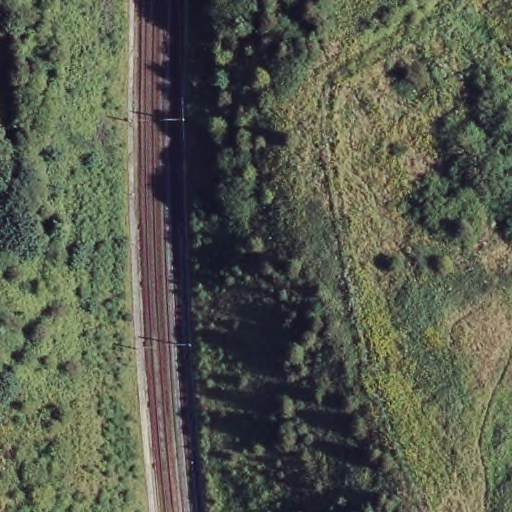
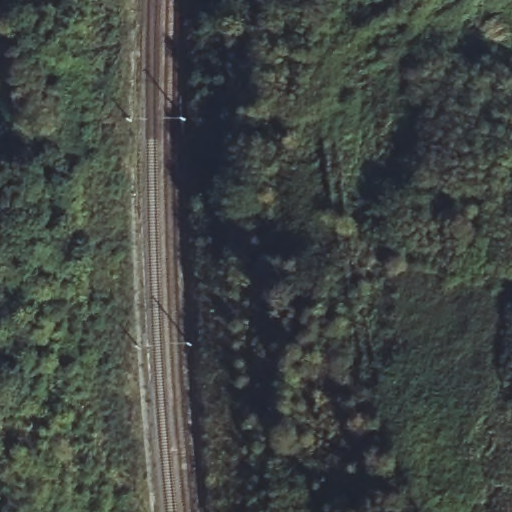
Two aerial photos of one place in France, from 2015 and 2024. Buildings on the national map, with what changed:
[]

